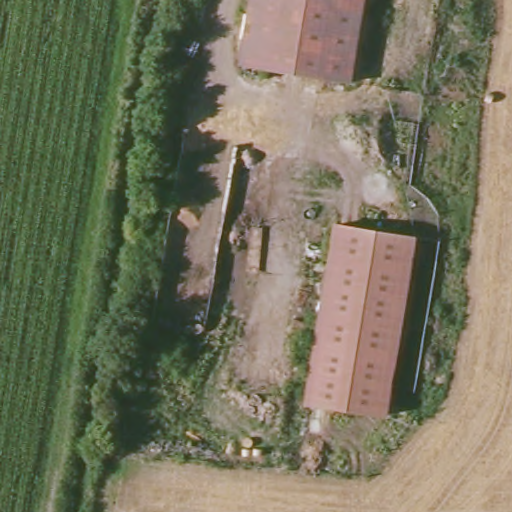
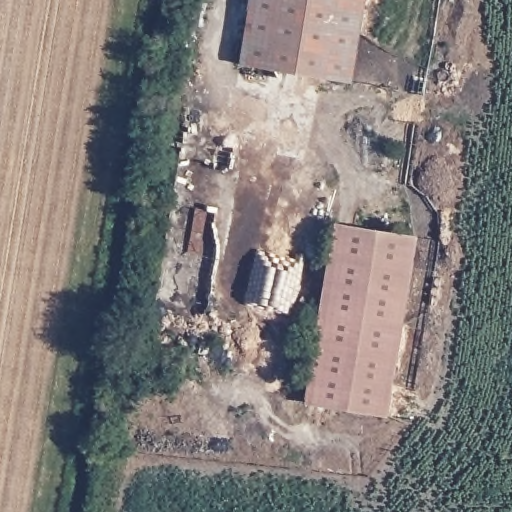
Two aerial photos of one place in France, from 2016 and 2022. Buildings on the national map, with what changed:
unchanged [(350,84),(239,67),(249,0),(363,0),(350,84)]
unchanged [(411,240),(382,416),(304,405),(324,286),(334,227),(377,234),(411,240)]

